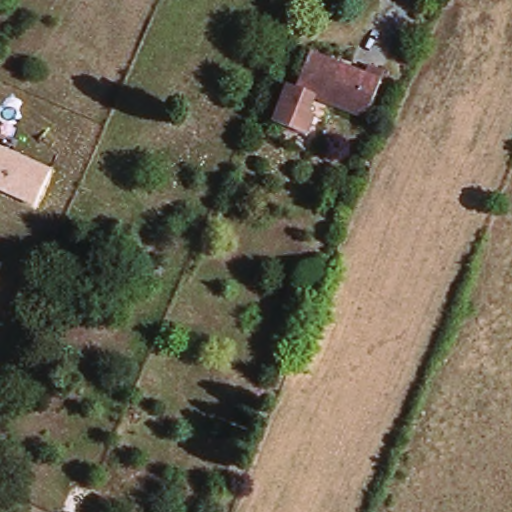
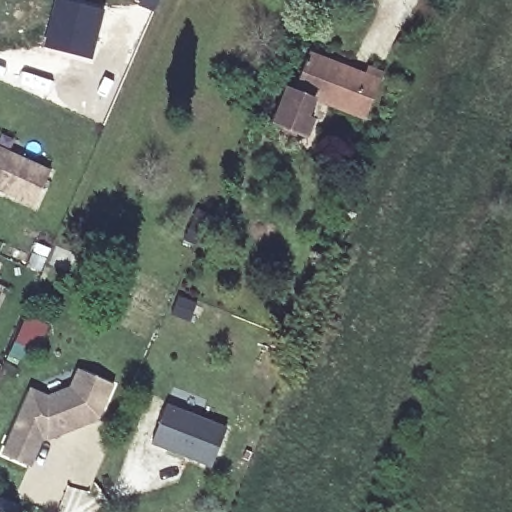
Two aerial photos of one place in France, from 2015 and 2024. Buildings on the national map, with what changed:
new [(54,0),(74,0),(105,8),(92,58),(42,45),(54,0)]
unchanged [(297,89),(299,83),(306,86),(321,48),(370,69),(372,64),(394,73),(377,115),(335,98),(327,103),(311,141),(281,129),(269,125),(285,85),(297,89)]
unchanged [(0,146),(52,170),(35,207),(0,191),(0,146)]
new [(4,452),(31,389),(49,395),(73,387),(79,369),(115,384),(100,417),(74,426),(72,423),(65,426),(66,430),(48,436),(44,433),(30,463),(4,452)]
new [(170,406),(230,429),(216,467),(155,443),(170,406)]

